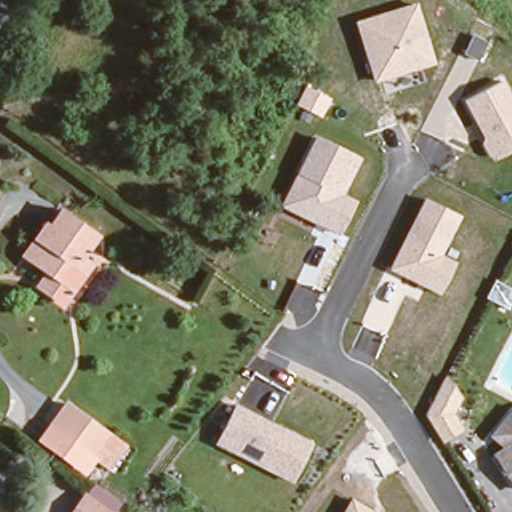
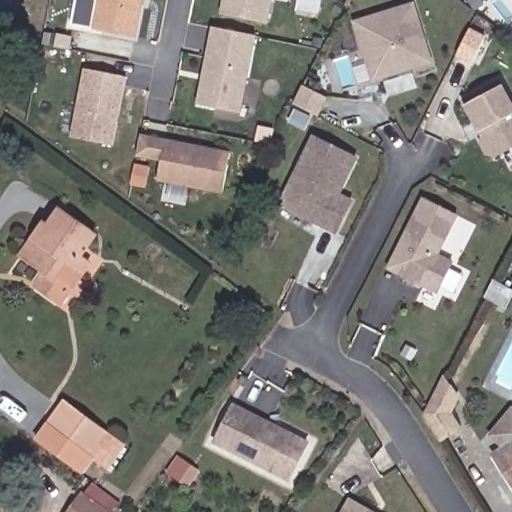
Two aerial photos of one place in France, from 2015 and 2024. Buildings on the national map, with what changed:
new [(91,31),(98,0),(143,0),(136,39),(91,31)]
new [(219,15),(222,0),(273,0),(269,24),(219,15)]
unchanged [(431,62),(374,81),(356,22),(414,5),(431,62)]
new [(241,114),(195,105),(211,27),(256,36),(241,114)]
new [(472,31),(488,39),(475,64),(459,55),(472,31)]
new [(126,77),(112,146),(70,137),(84,69),(126,77)]
unchanged [(512,149),(495,159),(492,155),(488,155),(482,143),(485,137),(464,101),(499,82),(512,104),(512,149)]
new [(304,85),(327,97),(318,115),(294,103),(304,85)]
new [(155,182),(159,162),(136,157),(140,135),(231,152),(223,195),(155,182)]
unchanged [(352,199),(336,234),(303,216),(292,184),(314,139),(355,160),(339,195),(352,199)]
unchanged [(438,254),(455,262),(439,292),(390,267),(424,200),(458,215),(438,254)]
unchanged [(45,276),(24,260),(17,255),(28,239),(41,222),(46,226),(60,207),(95,234),(79,255),(87,261),(72,282),(65,291),(45,276)]
demolished [(217,312),(198,302),(217,267),(234,277),(217,312)]
unchanged [(462,429),(441,442),(424,414),(444,376),(460,397),(453,412),(462,429)]
demolished [(61,390),(122,440),(103,466),(39,414),(61,390)]
new [(125,445),(106,470),(93,461),(83,475),(35,439),(63,400),(125,445)]
unchanged [(290,481),(215,443),(233,405),(309,442),(290,481)]
unchanged [(512,444),(512,471),(501,452),(512,444)]
unchanged [(84,491),(93,498),(100,488),(119,502),(113,512),(114,512),(69,512),(84,491)]
unchanged [(352,497),(377,512),(344,512),(352,497)]

